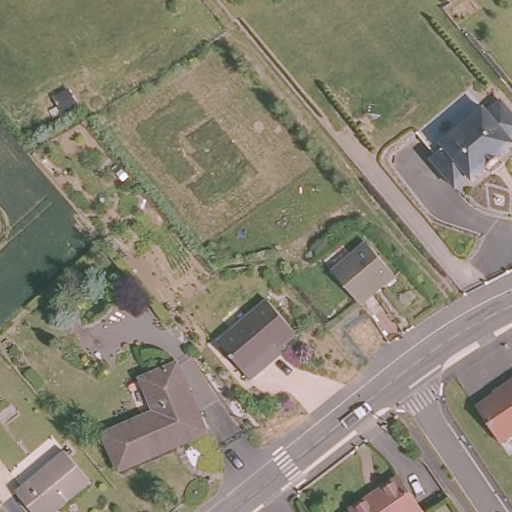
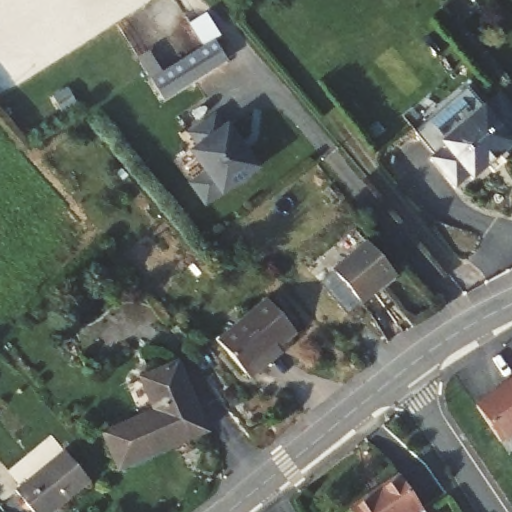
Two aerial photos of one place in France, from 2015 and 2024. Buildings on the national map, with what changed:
new [(212,37),(222,52),(175,82),(159,93),(149,78),(165,67),(212,37)]
unchanged [(444,145),(440,141),(482,106),(485,110),(500,98),(512,114),(512,137),(510,139),(512,142),(512,144),(471,178),(468,174),(454,185),(430,156),(444,145)]
new [(205,168),(190,149),(197,144),(187,130),(213,112),(223,126),(224,125),(234,138),(235,138),(244,151),(243,151),(254,166),(203,202),(187,180),(205,168)]
unchanged [(364,239),(392,273),(380,282),(380,281),(357,301),(330,268),(364,239)]
unchanged [(87,254),(114,286),(56,333),(28,302),(87,254)]
unchanged [(267,294),(295,329),(258,358),(261,362),(247,373),(217,334),(267,294)]
unchanged [(155,408),(144,372),(182,357),(212,427),(116,464),(104,429),(155,408)]
unchanged [(512,386),(512,437),(504,442),(480,407),(512,386)]
unchanged [(72,450),(95,481),(55,512),(33,512),(18,493),(72,450)]
unchanged [(429,512),(363,512),(353,495),(399,463),(423,496),(430,506),(429,512)]

